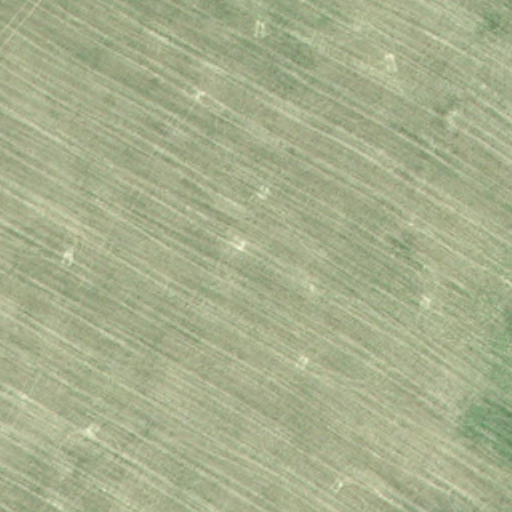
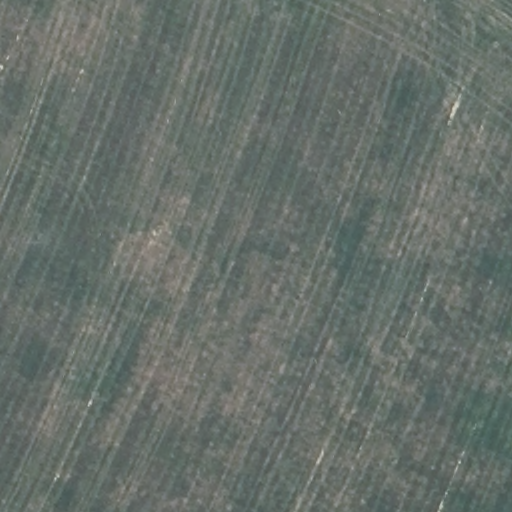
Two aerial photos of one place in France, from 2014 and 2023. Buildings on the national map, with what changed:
[]

